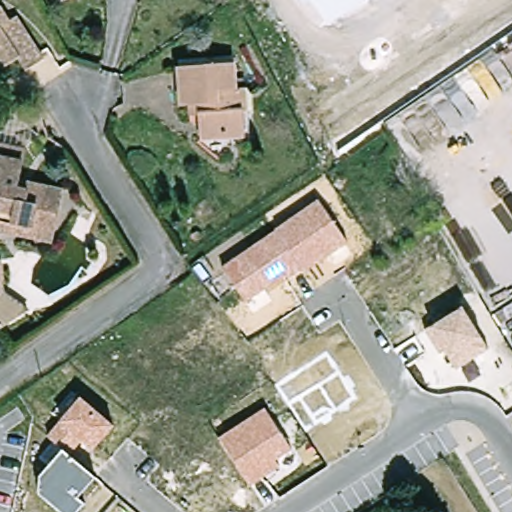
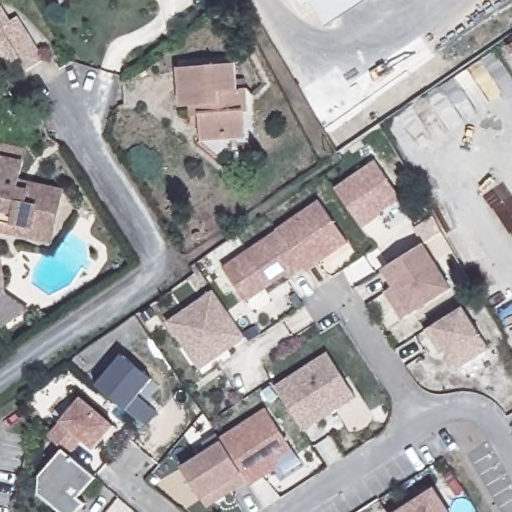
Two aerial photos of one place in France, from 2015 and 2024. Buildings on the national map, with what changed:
unchanged [(299,0),(310,0),(302,4),(299,0)]
unchanged [(311,0),(368,0),(329,26),(311,0)]
unchanged [(4,11),(13,25),(19,22),(46,64),(30,75),(21,61),(0,75),(0,10),(4,11)]
unchanged [(234,138),(210,141),(207,117),(196,119),(195,105),(187,106),(182,70),(238,62),(241,88),(252,86),(255,111),(249,112),(251,127),(252,135),(234,138)]
unchanged [(20,234),(0,230),(0,144),(33,150),(28,181),(57,187),(70,190),(66,210),(62,231),(61,241),(20,234)]
new [(375,159),(402,199),(362,228),(336,187),(375,159)]
unchanged [(320,200),(348,243),(306,272),(303,268),(247,302),(223,265),(276,228),(320,200)]
new [(424,241),(452,288),(411,315),(402,320),(384,292),(393,287),(381,269),(424,241)]
unchanged [(3,330),(0,326),(0,260),(3,261),(7,293),(32,310),(3,330)]
new [(213,289),(247,338),(200,371),(167,322),(213,289)]
new [(464,307),(483,340),(490,350),(456,370),(450,358),(430,326),(464,307)]
new [(329,351),(357,399),(305,432),(276,385),(329,351)]
new [(119,356),(148,381),(134,397),(154,414),(142,428),(93,386),(119,356)]
unchanged [(81,397),(115,424),(96,449),(82,441),(72,457),(94,475),(78,497),(85,503),(78,512),(62,512),(40,493),(40,475),(65,448),(47,436),(59,421),(81,397)]
unchanged [(292,449),(276,460),(281,466),(251,486),(220,437),(265,409),(292,449)]
new [(207,510),(202,500),(181,466),(222,440),(243,474),(248,482),(207,510)]
new [(435,487),(451,512),(397,512),(435,487)]

